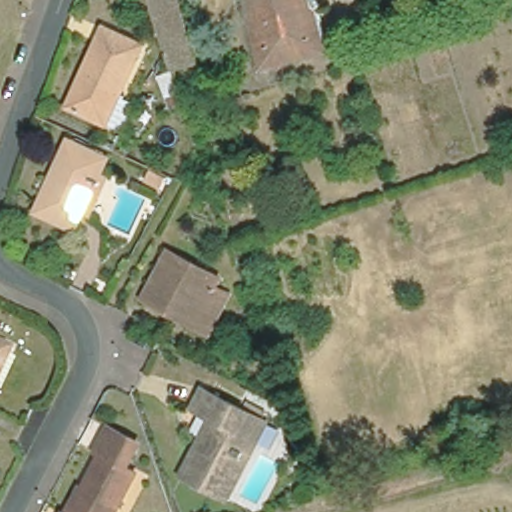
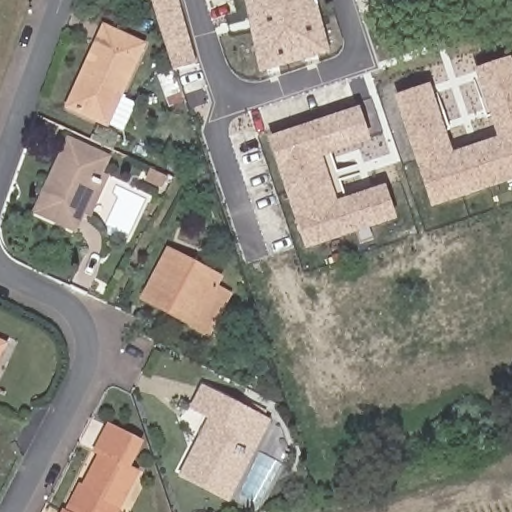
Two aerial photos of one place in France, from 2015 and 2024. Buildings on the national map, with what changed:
unchanged [(192,65),(169,71),(145,0),(172,0),(174,10),(192,65)]
unchanged [(261,71),(245,0),(314,0),(325,36),(330,53),(307,59),(261,71)]
unchanged [(118,101),(130,106),(117,134),(101,127),(61,109),(97,29),(137,47),(115,97),(119,99),(118,101)]
new [(512,63),(512,182),(431,207),(394,95),(430,84),(452,152),(497,139),(475,70),(510,57),(512,63)]
new [(370,141),(331,155),(345,199),(385,185),(397,220),(306,250),(268,139),(359,107),(370,141)]
unchanged [(71,223),(35,207),(68,134),(109,151),(102,167),(109,170),(90,211),(84,209),(76,225),(71,223)]
unchanged [(168,180),(163,190),(151,184),(156,174),(168,180)]
unchanged [(134,292),(159,245),(211,271),(206,280),(220,287),(200,328),(185,321),(186,320),(166,309),(134,292)]
unchanged [(206,491),(171,472),(201,415),(182,405),(191,386),(239,412),(244,403),(257,410),(253,419),(257,421),(246,442),(216,496),(206,491)]
unchanged [(78,491),(96,457),(89,453),(103,427),(124,438),(129,452),(119,470),(131,476),(112,512),(58,512),(71,488),(78,491)]

